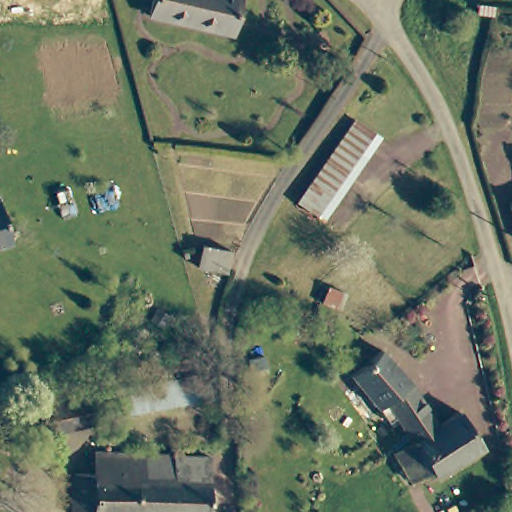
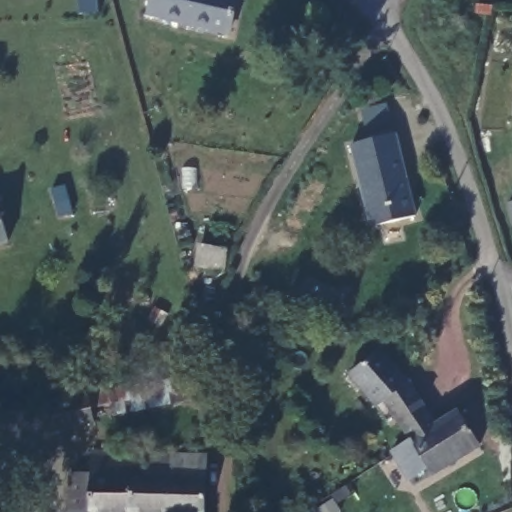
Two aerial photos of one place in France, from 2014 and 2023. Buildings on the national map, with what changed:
unchanged [(150,0),(235,0),(231,30),(148,18),(150,0)]
new [(372,227),(351,145),(370,140),(361,110),(387,104),(395,134),(416,215),(372,227)]
unchanged [(509,239),(505,203),(512,201),(512,239),(509,239)]
unchanged [(0,248),(0,224),(6,246),(0,248)]
demolished [(328,283),(336,267),(350,274),(342,292),(328,283)]
unchanged [(379,357),(443,430),(461,419),(480,452),(423,482),(418,474),(403,482),(390,457),(416,443),(386,406),(378,412),(352,379),(379,357)]
unchanged [(45,412),(166,380),(177,377),(183,401),(167,405),(90,425),(92,432),(52,442),(45,412)]
unchanged [(171,512),(170,458),(170,455),(209,453),(211,512),(171,512)]
unchanged [(171,512),(73,512),(72,485),(91,484),(91,461),(170,458),(171,512)]

